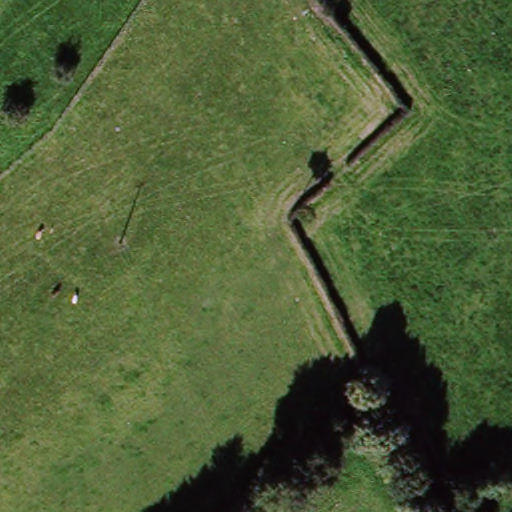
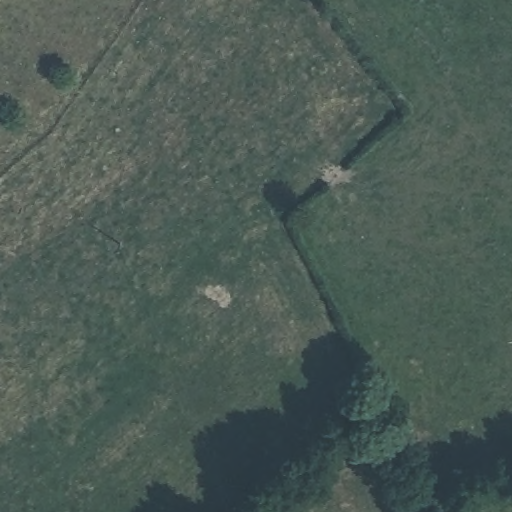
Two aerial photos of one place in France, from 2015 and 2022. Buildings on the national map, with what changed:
[]

